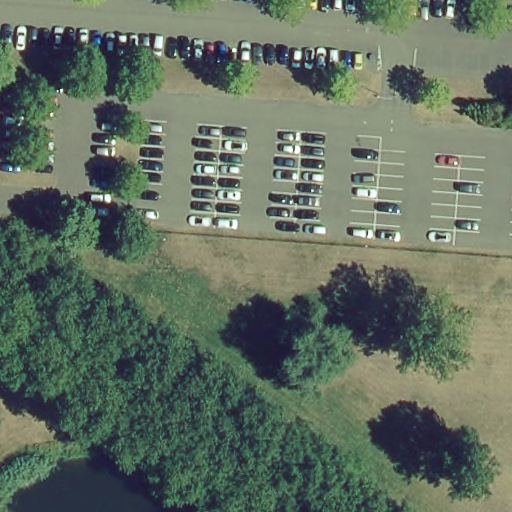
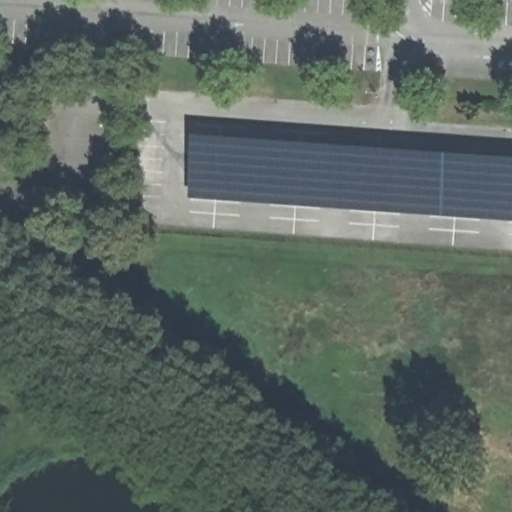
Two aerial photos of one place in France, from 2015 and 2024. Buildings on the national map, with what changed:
new [(194,201),(196,138),(512,161),(512,223),(194,201)]

